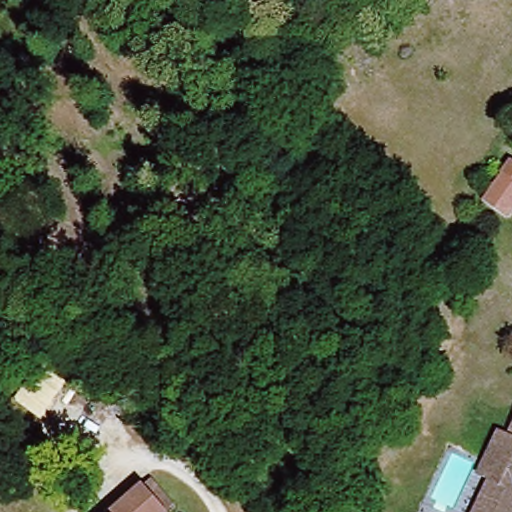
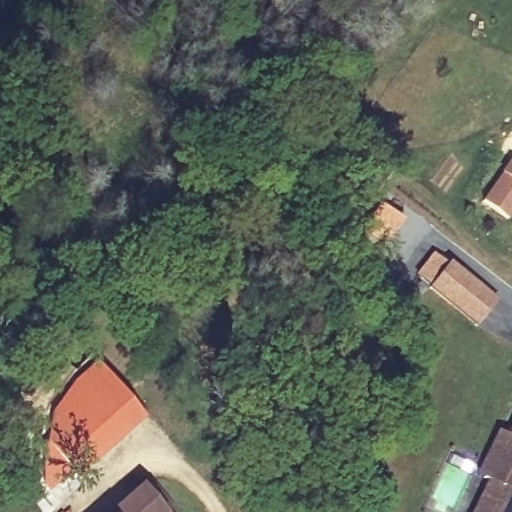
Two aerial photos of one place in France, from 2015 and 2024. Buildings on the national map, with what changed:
unchanged [(502,203),(479,185),(508,145),(512,148),(512,190),(502,203)]
new [(419,275),(436,254),(449,264),(451,262),(499,300),(480,324),(432,287),(433,285),(419,275)]
new [(49,443),(53,413),(73,380),(94,359),(114,380),(99,396),(131,429),(81,476),(75,471),(54,491),(49,485),(46,447),(49,443)]
new [(114,380),(146,414),(131,429),(99,396),(114,380)]
unchanged [(478,512),(491,478),(483,474),(499,436),(507,438),(512,427),(512,512),(478,512)]
unchanged [(153,478),(177,505),(171,512),(119,512),(120,510),(153,478)]

